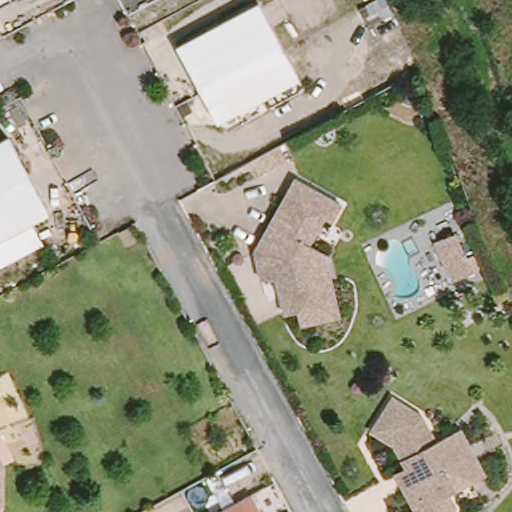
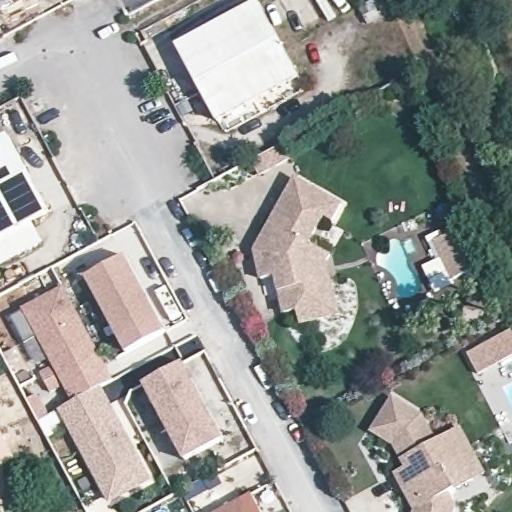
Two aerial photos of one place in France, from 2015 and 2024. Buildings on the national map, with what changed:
unchanged [(7,0),(0,4),(0,0),(7,0)]
unchanged [(219,125),(176,49),(259,4),(300,77),(219,125)]
unchanged [(31,225),(0,242),(0,146),(11,140),(51,215),(31,225)]
unchanged [(330,227),(320,224),(311,250),(325,256),(338,315),(302,326),(294,305),(286,307),(275,280),(265,283),(252,254),(295,179),(337,199),(330,227)]
unchanged [(31,225),(41,245),(0,266),(0,242),(31,225)]
unchanged [(454,280),(436,245),(463,230),(483,263),(454,280)]
new [(87,277),(128,255),(168,331),(127,352),(87,277)]
new [(72,402),(67,392),(21,308),(63,286),(108,370),(113,380),(72,402)]
new [(512,330),(512,357),(479,375),(468,354),(512,330)]
new [(184,363),(224,439),(185,460),(145,384),(184,363)]
unchanged [(418,511),(406,489),(398,472),(410,467),(398,444),(375,430),(396,398),(425,417),(438,442),(451,436),(462,430),(486,476),(458,491),(452,495),(457,506),(456,512),(417,512),(418,511)]
new [(115,403),(155,477),(117,498),(77,423),(115,403)]
unchanged [(1,427),(0,427),(0,426),(1,427)]
unchanged [(0,502),(0,452),(3,457),(4,460),(4,492),(4,502),(0,502)]
unchanged [(247,485),(261,512),(197,512),(247,485)]

